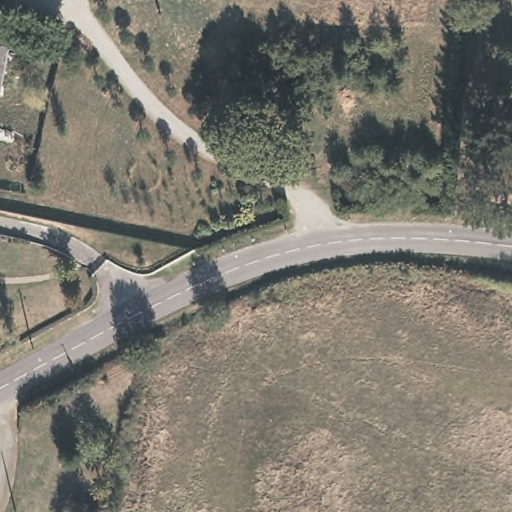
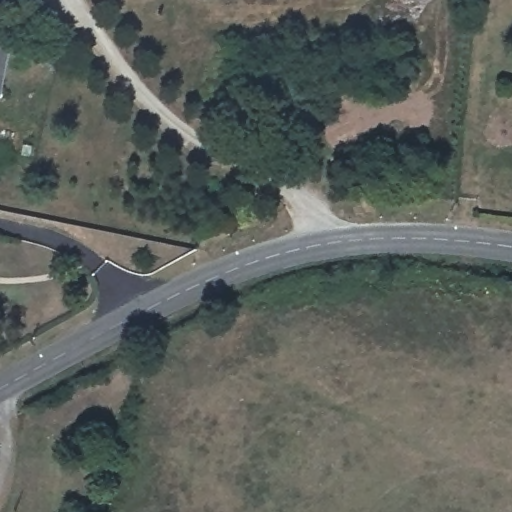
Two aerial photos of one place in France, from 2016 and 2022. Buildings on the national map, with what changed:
unchanged [(0,57),(0,44),(2,44),(0,57)]

